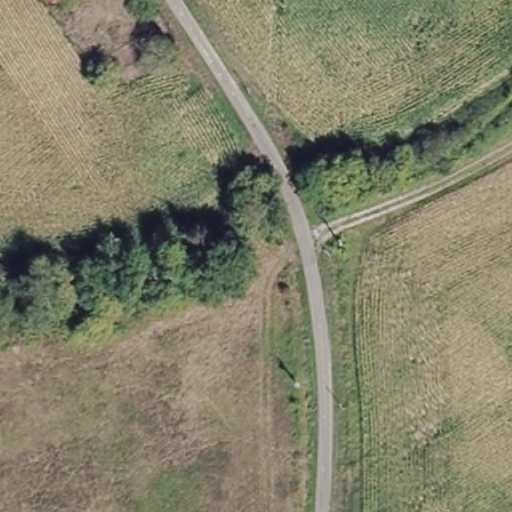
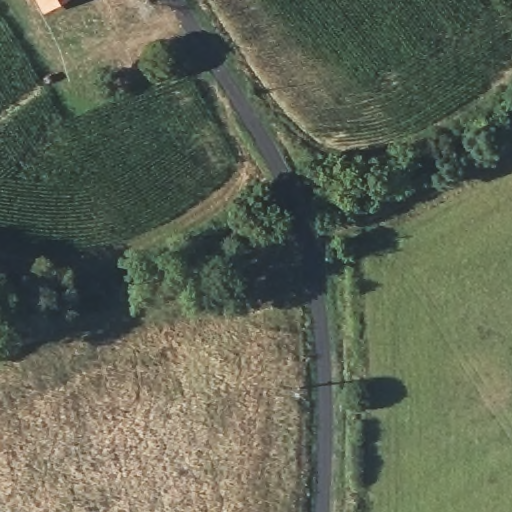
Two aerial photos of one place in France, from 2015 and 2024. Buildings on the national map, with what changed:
unchanged [(51,2),(50,0),(54,0),(51,2)]

